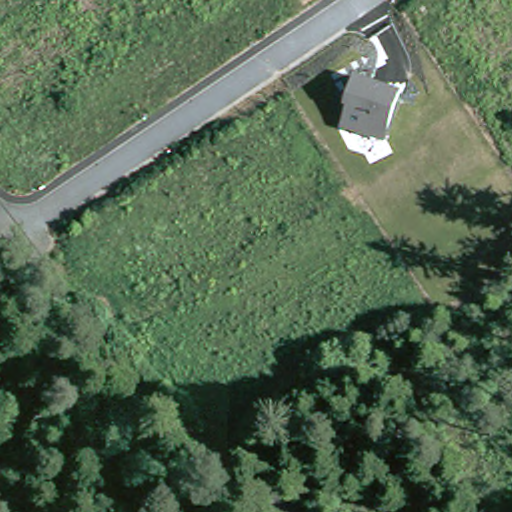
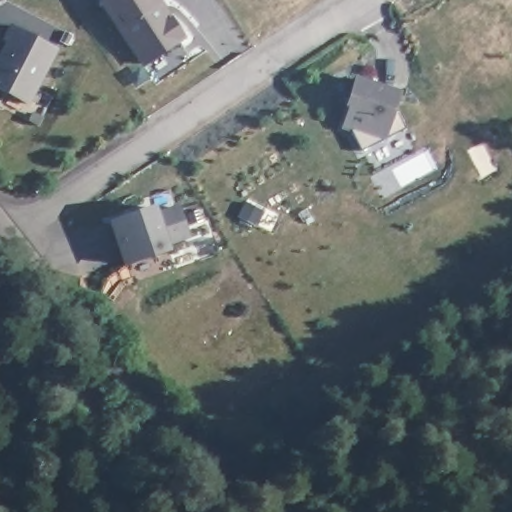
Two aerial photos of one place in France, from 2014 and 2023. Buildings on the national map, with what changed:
new [(187,35),(144,66),(100,0),(162,0),(187,35)]
new [(0,86),(0,54),(7,41),(3,40),(12,22),(59,46),(32,102),(0,86)]
unchanged [(400,89),(387,141),(342,126),(358,75),(400,89)]
new [(190,237),(171,243),(172,247),(125,263),(109,220),(157,203),(159,210),(180,201),(190,237)]

